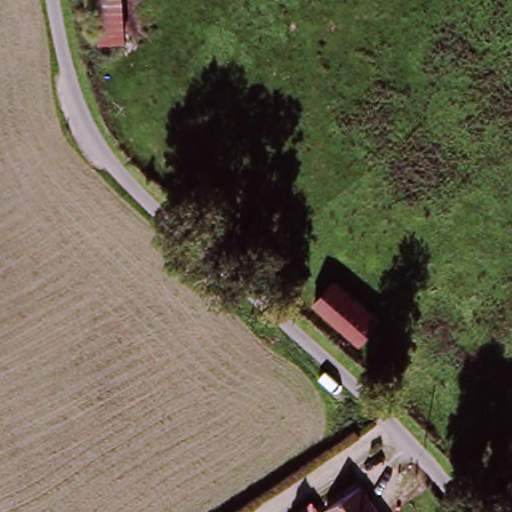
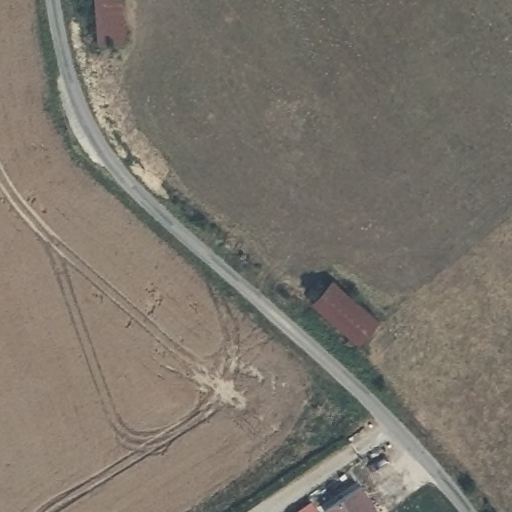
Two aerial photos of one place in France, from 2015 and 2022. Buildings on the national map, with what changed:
unchanged [(101,72),(95,0),(123,0),(127,69),(101,72)]
unchanged [(315,303),(332,285),(376,327),(359,345),(315,303)]
unchanged [(372,491),(384,512),(336,512),(372,491)]

